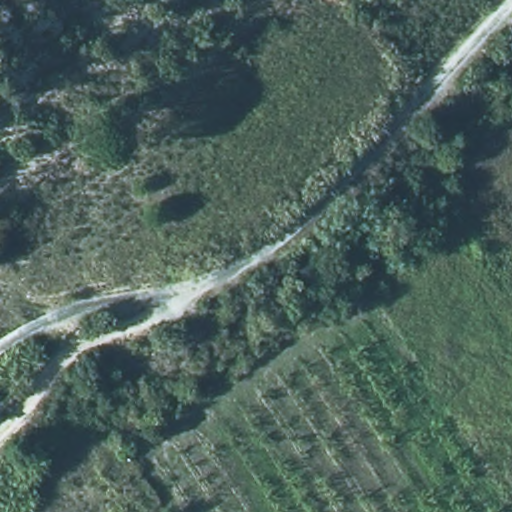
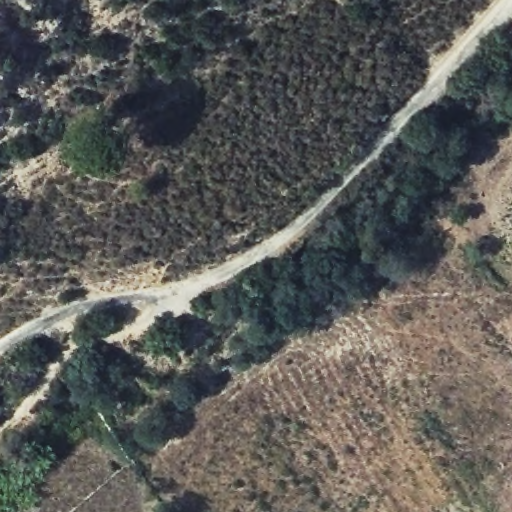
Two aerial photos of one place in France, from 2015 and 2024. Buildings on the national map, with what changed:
unchanged [(512,30),(512,48),(503,40),(512,30)]

